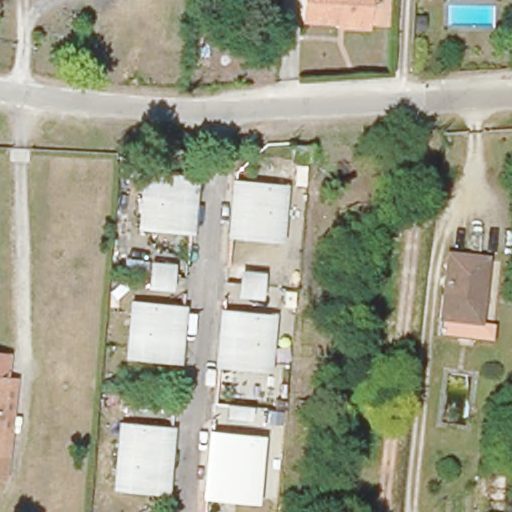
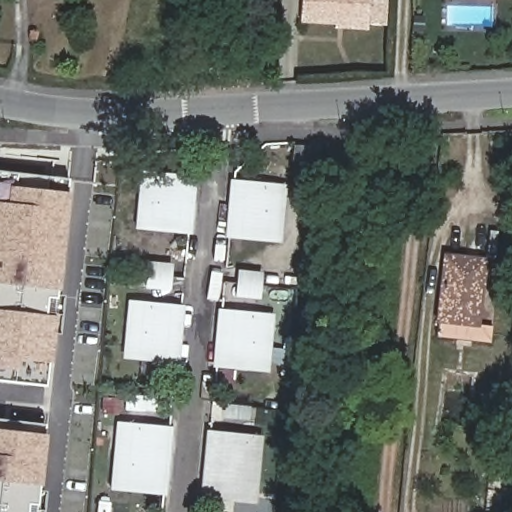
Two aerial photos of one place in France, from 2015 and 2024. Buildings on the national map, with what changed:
unchanged [(343,24),(343,17),(303,15),(304,0),(387,0),(387,20),(373,19),(372,25),(343,24)]
unchanged [(306,165),(288,162),(289,146),(308,148),(306,165)]
new [(0,379),(0,171),(66,176),(45,383),(0,379)]
unchanged [(169,230),(131,227),(136,175),(187,180),(185,196),(185,199),(185,204),(182,231),(169,230)]
unchanged [(279,188),(275,240),(259,239),(246,237),(224,235),(226,208),(227,200),(229,182),(263,186),(264,186),(279,188)]
unchanged [(473,320),(435,317),(441,254),(479,257),(473,320)]
unchanged [(168,293),(143,290),(144,278),(145,265),(156,265),(170,267),(169,280),(168,293)]
unchanged [(232,298),(233,285),(234,272),(256,275),(255,287),(254,301),(232,298)]
unchanged [(123,357),(126,330),(127,323),(129,304),(180,309),(178,327),(177,335),(175,361),(123,357)]
unchanged [(266,342),(264,371),(248,370),(213,366),(215,338),(216,330),(217,313),(253,316),(269,317),(267,336),(266,342)]
unchanged [(158,401),(156,415),(131,411),(133,400),(158,401)]
unchanged [(222,420),(222,407),(245,410),(244,422),(222,420)]
new [(33,512),(0,512),(0,416),(44,421),(33,512)]
unchanged [(111,488),(115,448),(117,426),(123,427),(161,430),(168,431),(166,453),(161,493),(111,488)]
unchanged [(237,500),(202,497),(205,456),(207,434),(214,435),(242,437),(252,437),(259,438),(257,461),(254,502),(237,500)]

